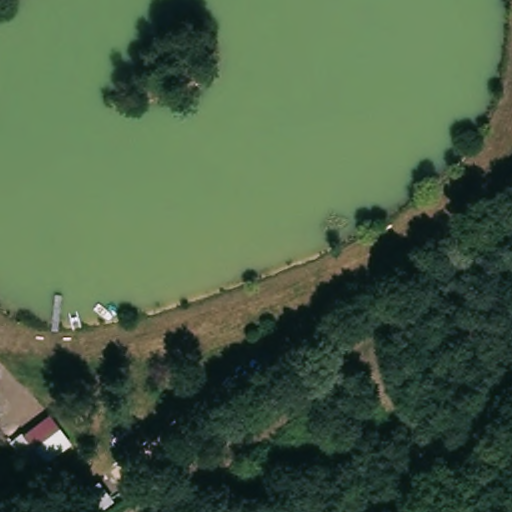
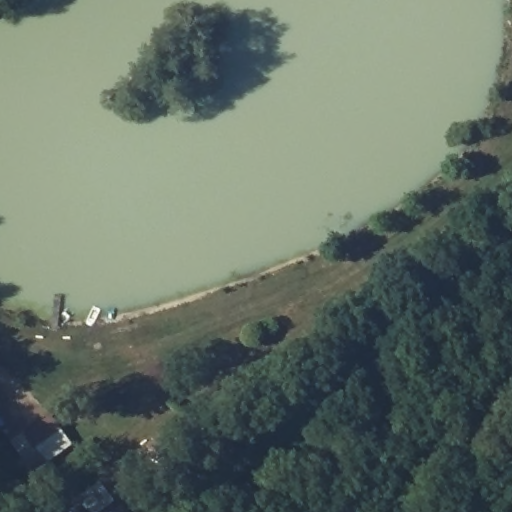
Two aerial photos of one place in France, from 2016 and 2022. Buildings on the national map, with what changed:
unchanged [(49,505),(0,442),(0,410),(4,406),(68,493),(49,505)]

